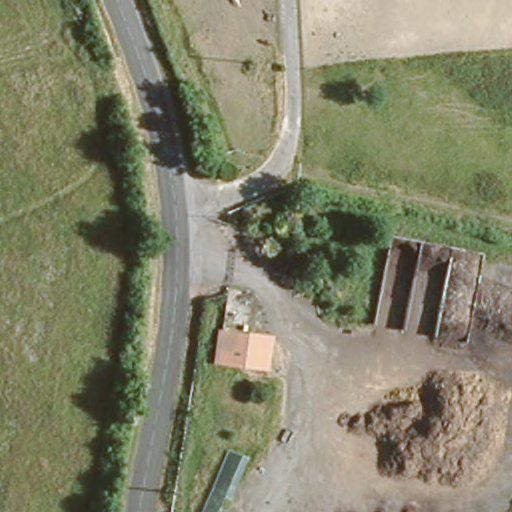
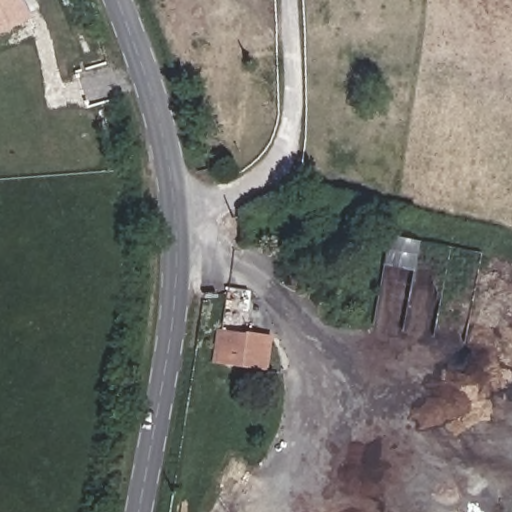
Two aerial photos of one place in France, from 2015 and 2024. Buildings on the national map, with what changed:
new [(26,20),(0,33),(0,0),(17,0),(26,20)]
unchanged [(268,372),(215,367),(218,328),(272,336),(268,372)]

